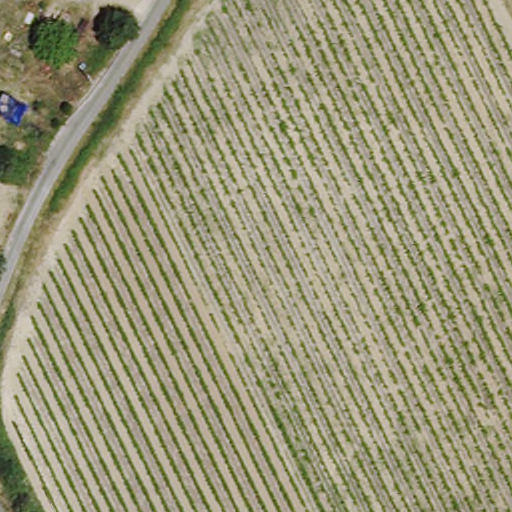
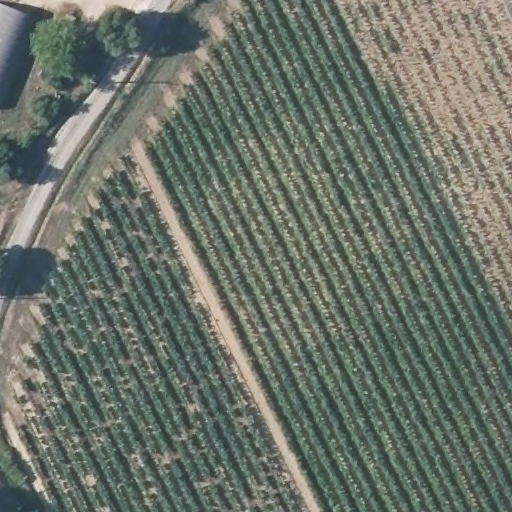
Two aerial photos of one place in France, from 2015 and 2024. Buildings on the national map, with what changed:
new [(0,109),(0,6),(36,20),(0,109)]

